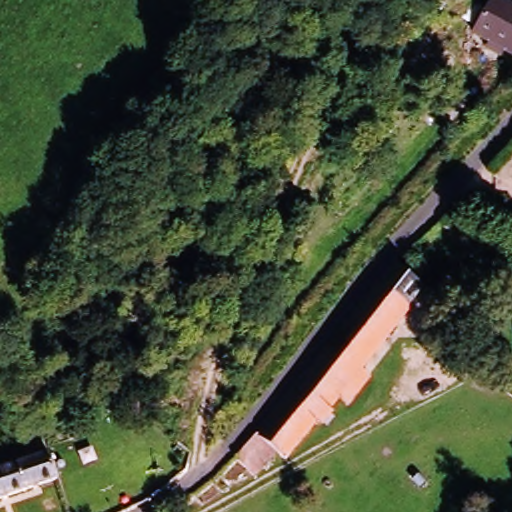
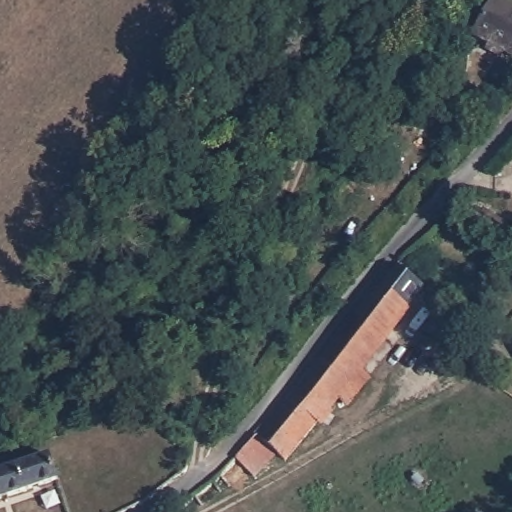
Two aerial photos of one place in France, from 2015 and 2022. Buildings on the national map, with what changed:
unchanged [(465,40),(479,0),(512,12),(512,56),(498,51),(496,59),(481,54),(483,46),(465,40)]
unchanged [(358,392),(341,379),(281,449),(275,444),(257,464),(239,449),(399,259),(425,281),(364,352),(381,365),(358,392)]
unchanged [(54,449),(62,476),(58,477),(0,495),(0,466),(49,450),(54,449)]

